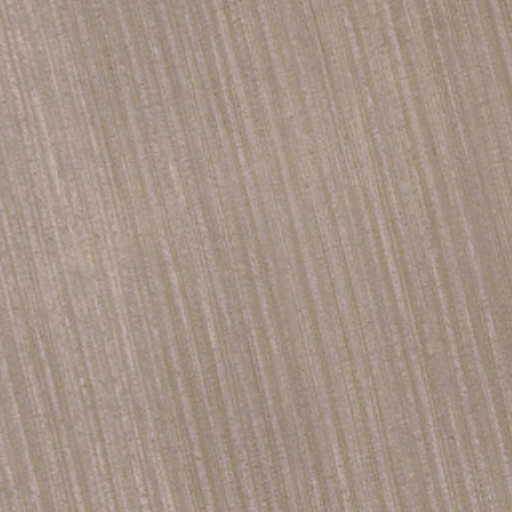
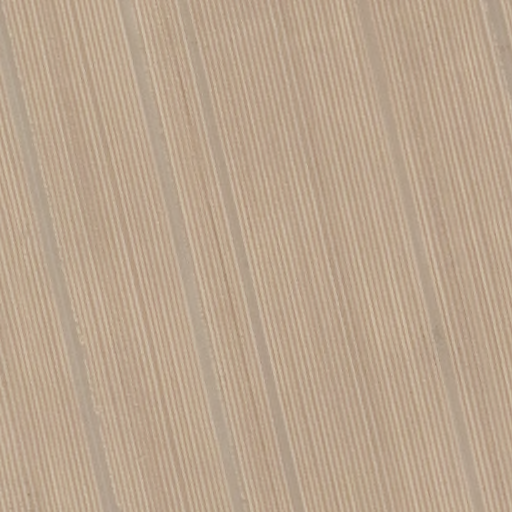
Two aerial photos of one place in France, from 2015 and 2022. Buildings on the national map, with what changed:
[]

